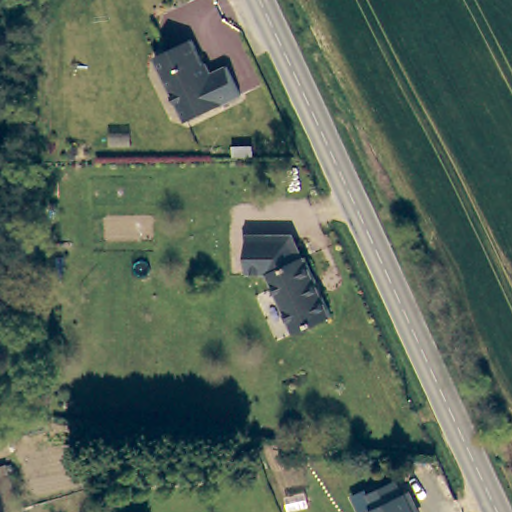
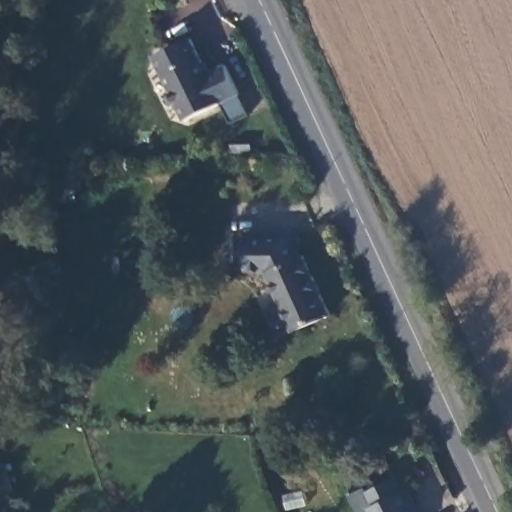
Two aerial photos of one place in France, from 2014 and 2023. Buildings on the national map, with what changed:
unchanged [(169,76),(161,60),(171,55),(197,43),(210,70),(208,70),(212,80),(232,71),(245,100),(191,125),(169,76)]
unchanged [(252,151),(232,151),(232,142),(252,142),(252,151)]
unchanged [(295,239),(304,260),(309,258),(336,317),(298,334),(272,275),(252,275),(251,239),(295,239)]
unchanged [(403,495),(411,492),(418,508),(414,510),(415,512),(373,512),(372,510),(377,508),(370,493),(397,481),(403,495)]
unchanged [(0,512),(0,500),(4,512),(0,512)]

